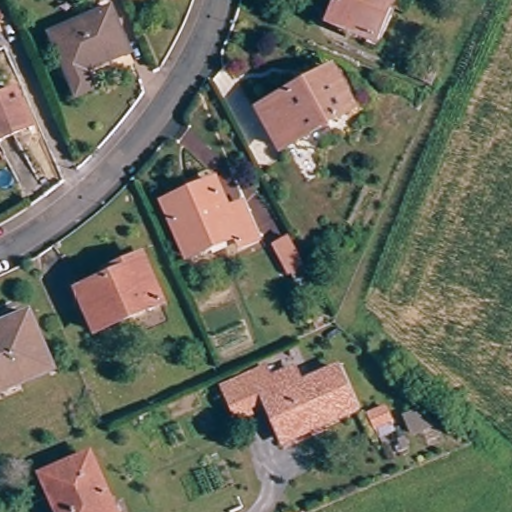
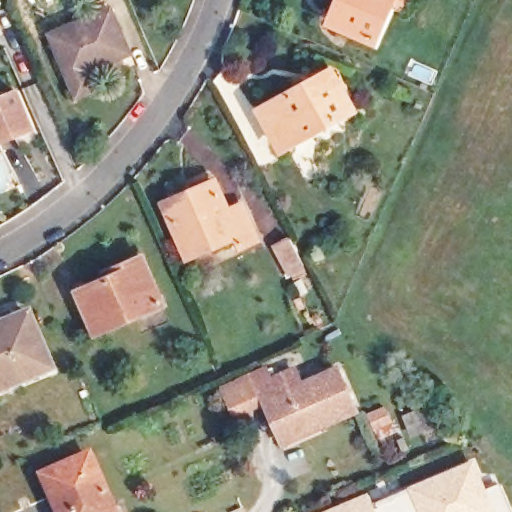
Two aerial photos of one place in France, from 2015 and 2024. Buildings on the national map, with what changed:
unchanged [(340,0),(409,0),(403,14),(388,8),(374,42),(330,23),(340,0)]
unchanged [(85,77),(93,95),(77,102),(50,40),(110,15),(129,59),(85,77)]
unchanged [(260,110),(305,86),(330,72),(335,80),(352,111),(282,150),(260,110)]
unchanged [(31,129),(0,142),(0,99),(16,92),(31,129)]
unchanged [(256,241),(240,247),(236,237),(188,258),(164,204),(213,182),(226,212),(241,206),(256,241)]
unchanged [(304,266),(290,273),(276,247),(290,239),(304,266)]
unchanged [(95,334),(78,292),(108,279),(106,274),(116,270),(142,259),(162,305),(95,334)]
unchanged [(52,371),(0,393),(0,328),(28,315),(52,371)]
unchanged [(267,402),(248,410),(251,415),(237,421),(223,389),(266,370),(271,381),(294,371),(300,386),(337,370),(355,410),(322,425),(284,441),(267,402)]
unchanged [(391,422),(374,430),(368,416),(385,408),(391,422)]
unchanged [(425,408),(433,427),(413,436),(405,417),(425,408)]
unchanged [(42,478),(89,457),(114,512),(57,512),(42,478)]
new [(502,482),(512,505),(512,512),(378,512),(374,501),(474,458),(487,488),(502,482)]
new [(371,493),(378,512),(327,512),(371,493)]

